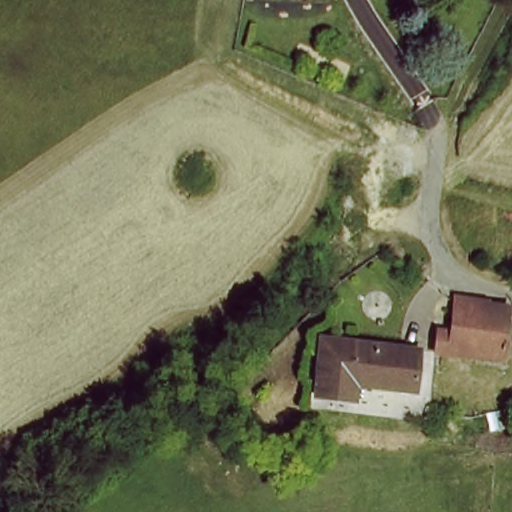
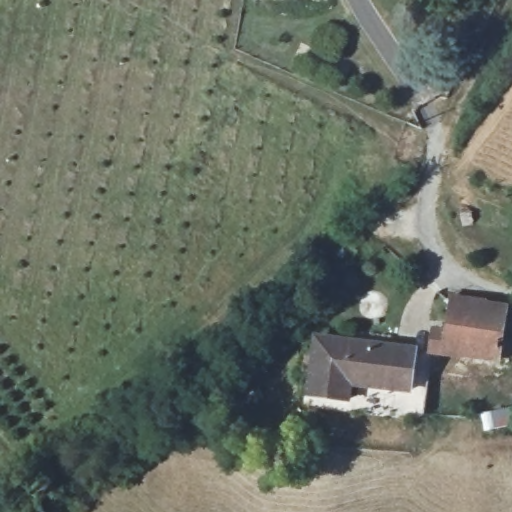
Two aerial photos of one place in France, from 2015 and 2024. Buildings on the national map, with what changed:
unchanged [(433,335),(449,336),(453,297),(503,305),(505,307),(503,344),(511,346),(510,358),(502,357),(502,363),(431,353),(432,345),(433,335)]
unchanged [(367,390),(367,385),(353,383),(350,402),(310,397),(320,340),(422,355),(419,375),(417,397),(410,396),(367,390)]

